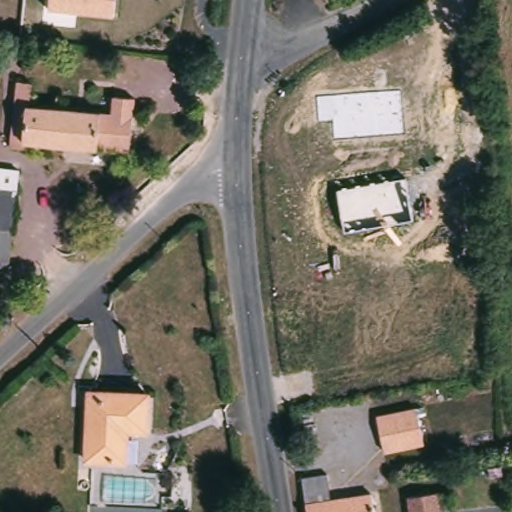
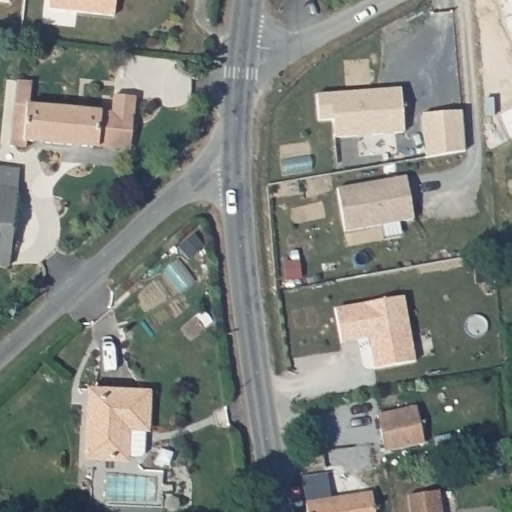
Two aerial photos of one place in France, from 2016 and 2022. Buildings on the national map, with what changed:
unchanged [(48,7),(49,0),(116,0),(114,14),(48,7)]
unchanged [(126,152),(20,141),(19,148),(4,146),(10,98),(15,98),(17,79),(29,80),(26,104),(115,114),(117,94),(133,95),(126,152)]
new [(388,90),(400,89),(403,133),(334,138),(332,120),(318,121),(316,95),(378,91),(388,90)]
new [(462,112),(465,151),(426,158),(422,115),(462,112)]
unchanged [(6,270),(0,270),(0,176),(17,178),(6,270)]
unchanged [(406,177),(414,220),(345,233),(337,189),(406,177)]
new [(341,343),(335,309),(403,297),(415,362),(373,369),(369,346),(368,338),(341,343)]
unchanged [(142,430),(123,430),(122,463),(81,463),(82,391),(143,391),(142,430)]
unchanged [(419,444),(380,450),(374,414),(413,407),(419,444)]
unchanged [(304,512),(300,488),(324,483),(328,498),(366,490),(371,512),(304,512)]
unchanged [(434,491),(438,512),(407,512),(404,497),(434,491)]

